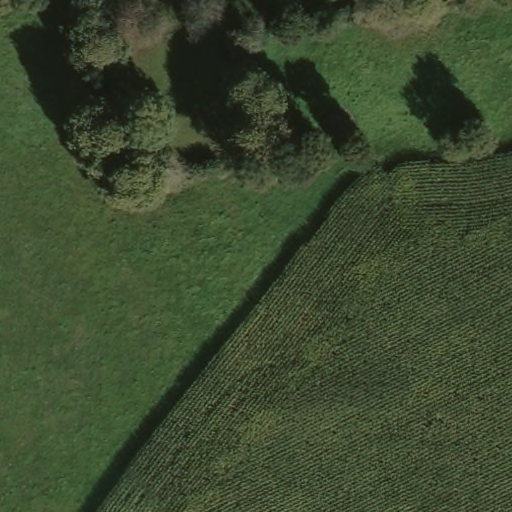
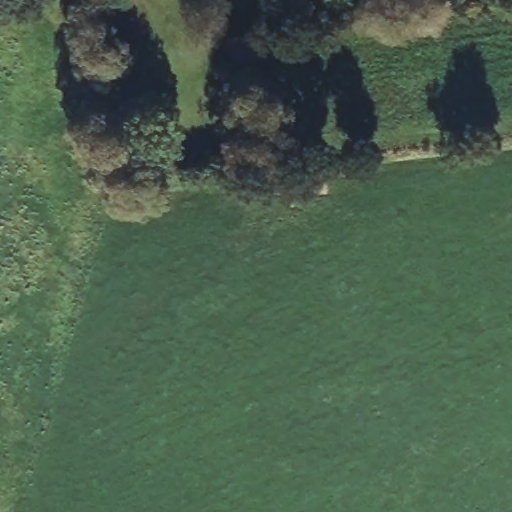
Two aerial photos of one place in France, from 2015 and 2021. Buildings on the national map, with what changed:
[]

